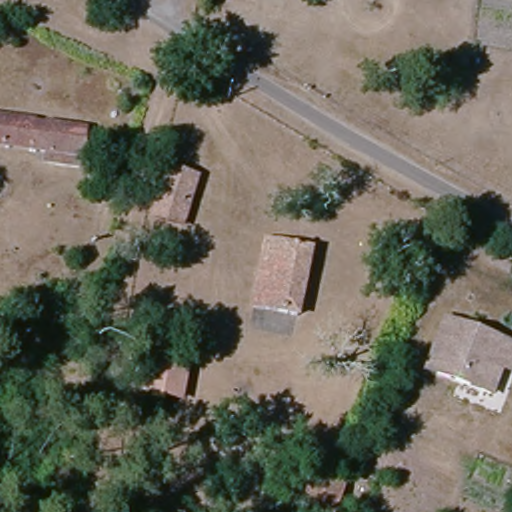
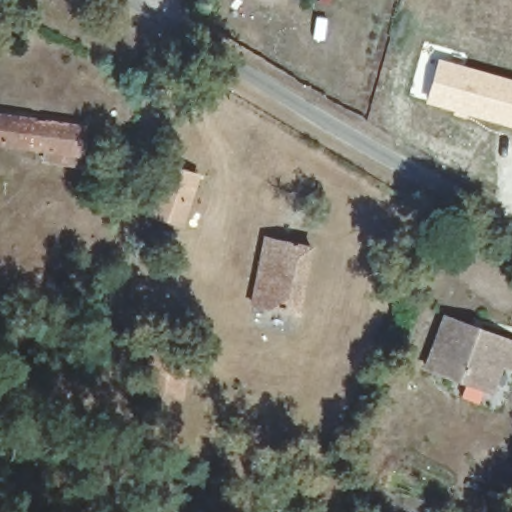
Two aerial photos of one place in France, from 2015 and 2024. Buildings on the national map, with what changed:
new [(512,78),(512,129),(425,102),(437,57),(512,78)]
unchanged [(95,118),(93,150),(0,156),(0,125),(95,118)]
unchanged [(183,227),(155,218),(169,164),(197,173),(183,227)]
unchanged [(303,329),(269,324),(271,301),(257,299),(268,230),(316,238),(303,329)]
unchanged [(436,367),(455,314),(478,324),(498,332),(512,338),(512,365),(501,394),(436,367)]
unchanged [(151,348),(194,358),(185,401),(141,394),(151,348)]
unchanged [(330,512),(302,499),(316,469),(342,482),(331,512),(330,512)]

